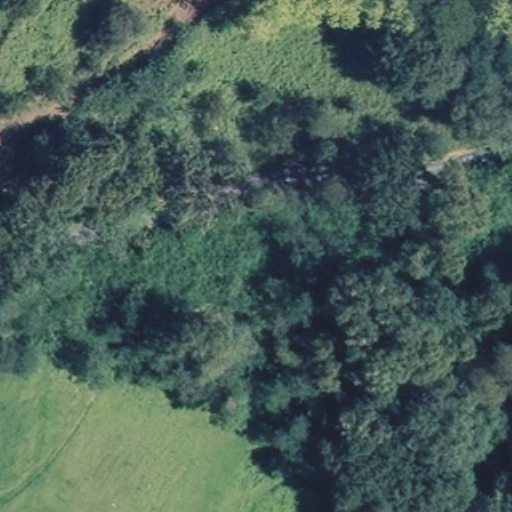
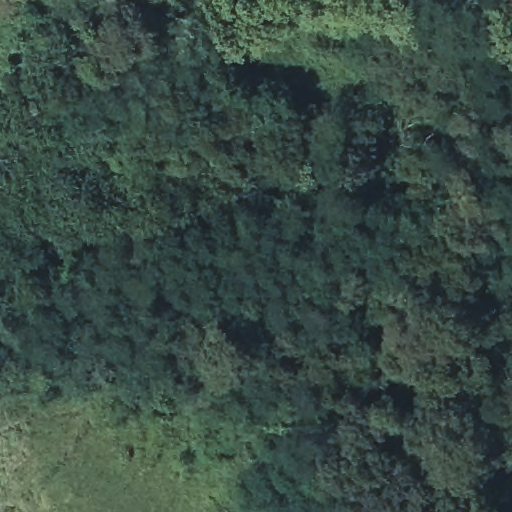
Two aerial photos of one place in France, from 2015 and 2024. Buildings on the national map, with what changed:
[]

